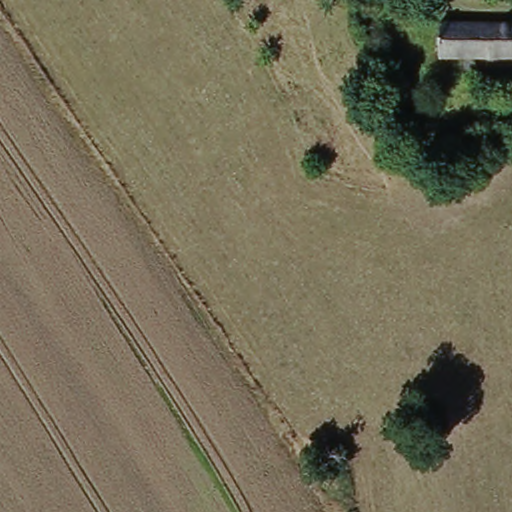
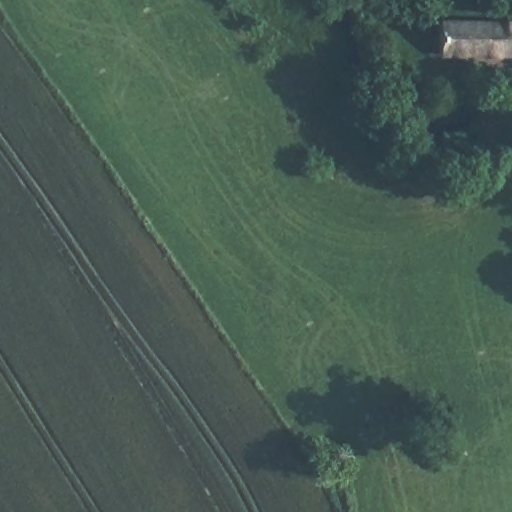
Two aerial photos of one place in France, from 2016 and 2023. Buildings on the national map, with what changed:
unchanged [(432,25),(512,24),(512,56),(433,56),(432,25)]
unchanged [(313,119),(334,114),(341,145),(322,150),(313,119)]

